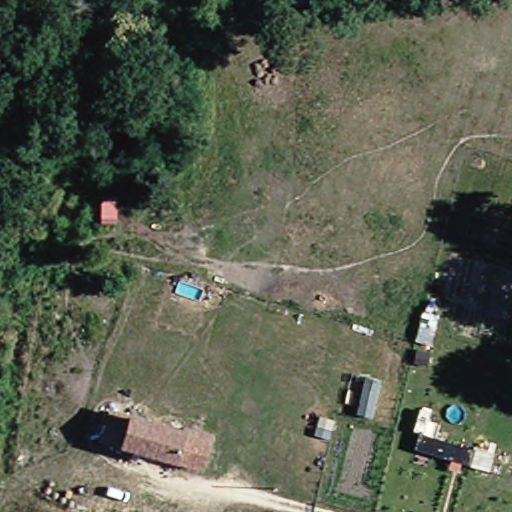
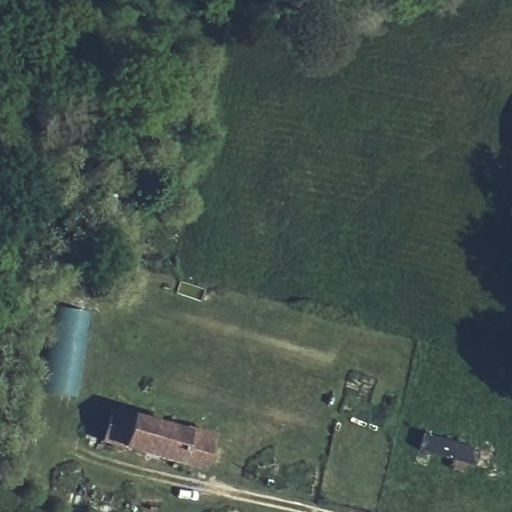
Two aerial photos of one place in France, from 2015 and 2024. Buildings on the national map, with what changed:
new [(512,158),(502,156),(511,108),(512,109),(512,158)]
new [(42,391),(56,305),(92,311),(78,398),(42,391)]
unchanged [(168,467),(112,452),(122,418),(178,432),(202,438),(193,472),(168,467)]

